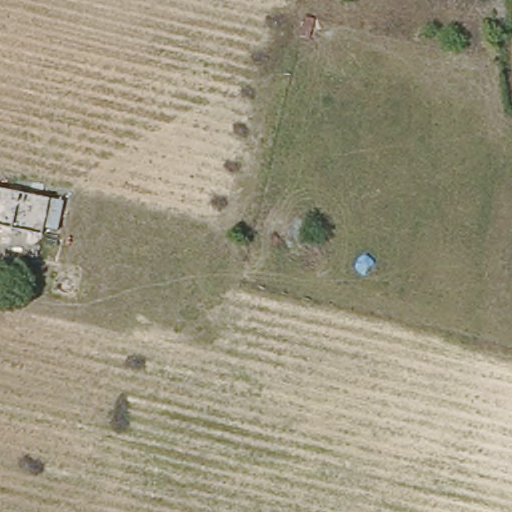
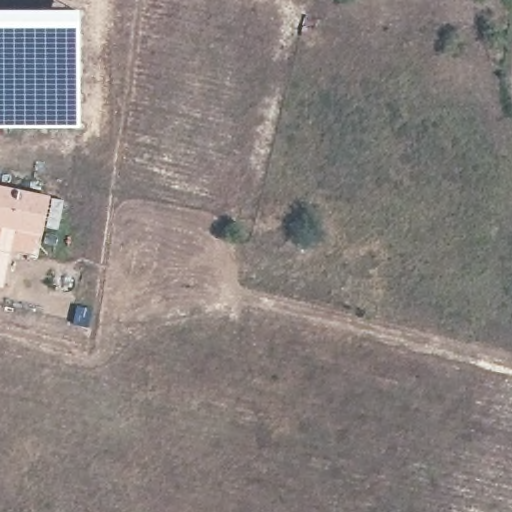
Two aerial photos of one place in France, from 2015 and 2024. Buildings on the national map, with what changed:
new [(81,11),(81,129),(0,128),(0,11),(81,11)]
unchanged [(51,197),(44,233),(0,224),(0,188),(51,197)]

